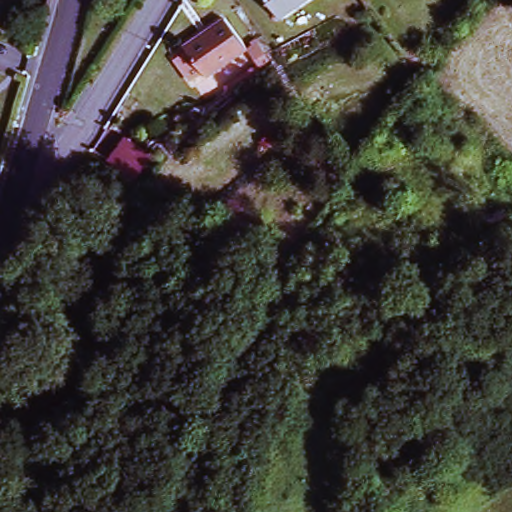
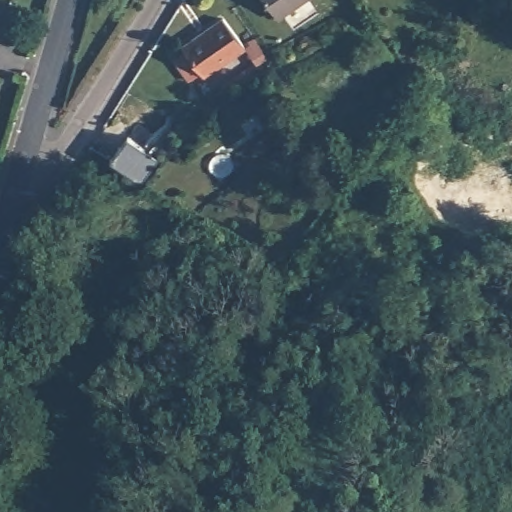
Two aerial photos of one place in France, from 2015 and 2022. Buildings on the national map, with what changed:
unchanged [(273,20),(258,0),(302,0),(273,20)]
unchanged [(178,47),(219,19),(241,50),(200,79),(197,74),(186,81),(170,59),(180,51),(178,47)]
unchanged [(111,164),(125,139),(152,154),(137,180),(111,164)]

